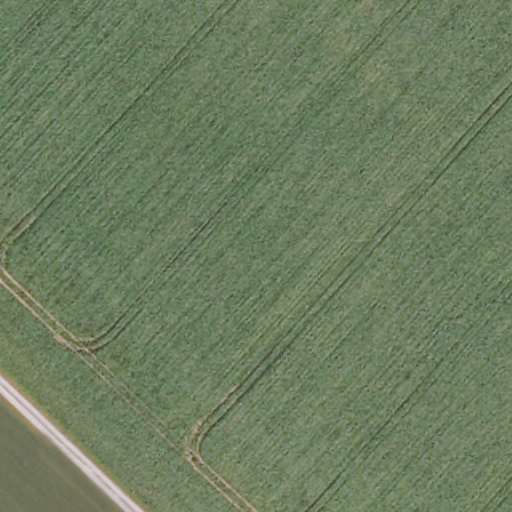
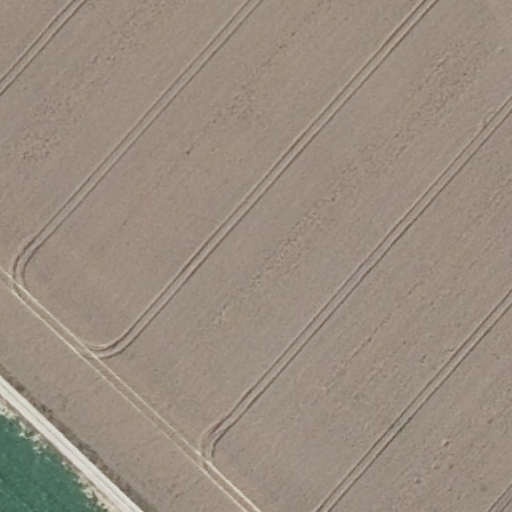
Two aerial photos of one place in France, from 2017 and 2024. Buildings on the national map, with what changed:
[]

